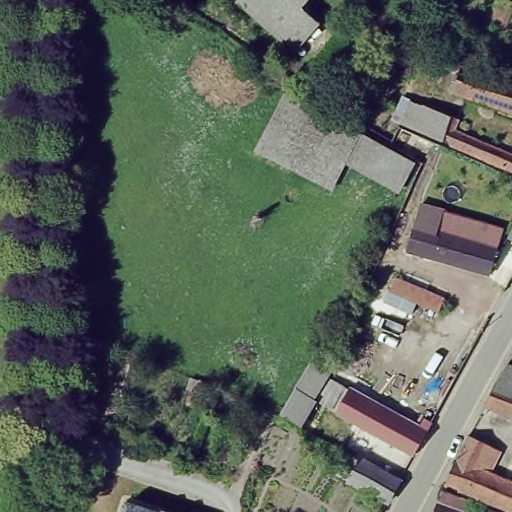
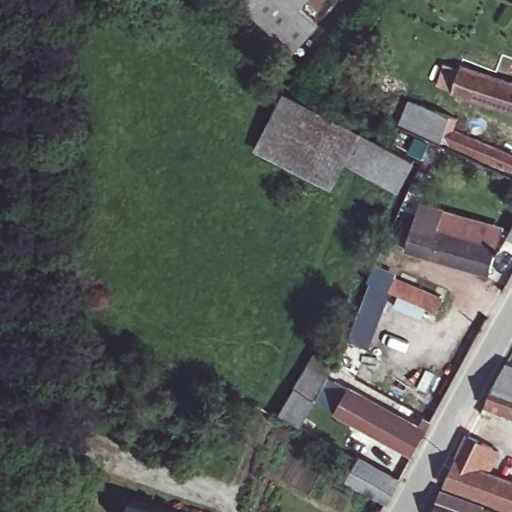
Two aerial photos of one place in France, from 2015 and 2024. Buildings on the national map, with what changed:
unchanged [(298,47),(241,4),(243,0),(295,0),(320,18),(298,47)]
unchanged [(295,0),(333,0),(320,18),(295,0)]
unchanged [(462,66),(512,83),(512,114),(451,93),(462,66)]
unchanged [(362,126),(416,157),(398,191),(345,163),(331,185),(253,140),(283,86),(362,126)]
unchanged [(450,113),(445,124),(512,153),(512,161),(510,166),(398,121),(405,98),(450,113)]
unchanged [(405,246),(414,220),(421,200),(441,206),(435,226),(492,242),(485,267),(405,246)]
unchanged [(512,221),(512,235),(506,231),(512,221)]
unchanged [(392,271),(439,289),(433,306),(386,289),(392,271)]
unchanged [(316,341),(339,355),(300,425),(276,410),(316,341)]
unchanged [(497,374),(499,369),(501,366),(512,370),(512,417),(483,408),(497,374)]
unchanged [(427,429),(413,452),(320,405),(332,382),(427,429)]
unchanged [(447,476),(472,431),(500,446),(492,463),(481,457),(477,463),(512,476),(512,501),(446,479),(447,476)]
unchanged [(398,479),(400,480),(396,488),(387,503),(338,477),(350,456),(398,479)]
unchanged [(125,512),(130,498),(135,500),(138,492),(191,512),(125,512)]
unchanged [(438,497),(451,502),(454,494),(495,507),(493,512),(431,512),(438,497)]

